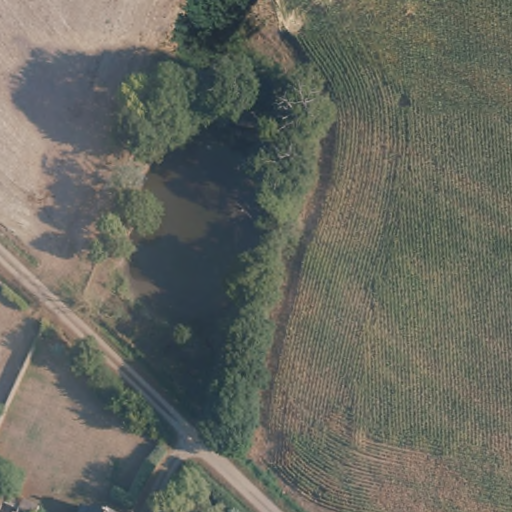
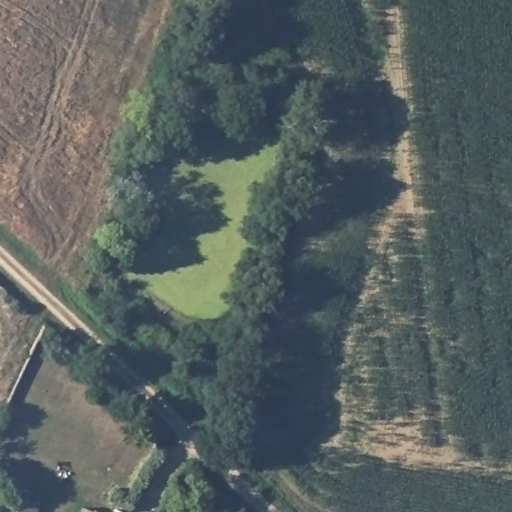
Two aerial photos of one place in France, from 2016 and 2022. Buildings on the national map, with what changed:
unchanged [(37,512),(25,512),(2,504),(0,510),(0,489),(7,492),(40,505),(37,512)]
unchanged [(99,512),(86,512),(88,507),(99,512)]

